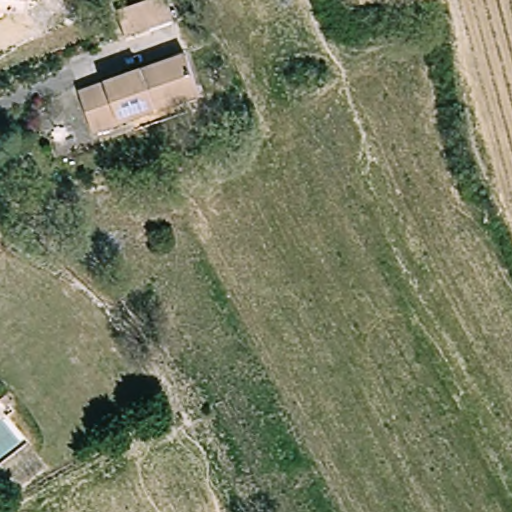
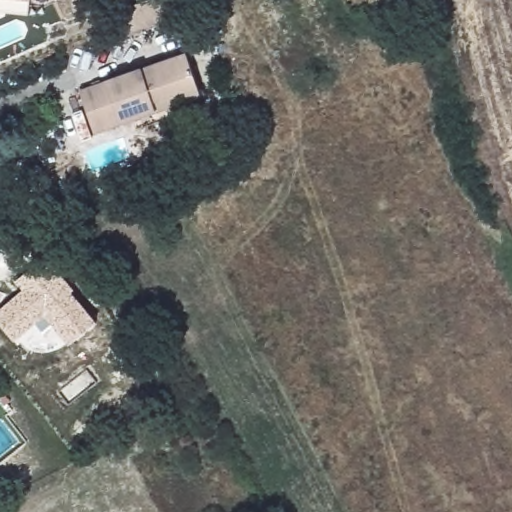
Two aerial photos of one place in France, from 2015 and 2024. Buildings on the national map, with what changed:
unchanged [(0,0),(30,0),(30,2),(26,18),(0,12),(0,0)]
unchanged [(124,14),(159,0),(171,0),(177,16),(131,34),(124,14)]
unchanged [(93,137),(75,95),(178,54),(195,95),(176,104),(152,113),(93,137)]
new [(69,345),(53,325),(44,332),(37,325),(15,340),(0,322),(0,311),(24,291),(16,282),(47,257),(75,292),(72,292),(97,322),(69,345)]

